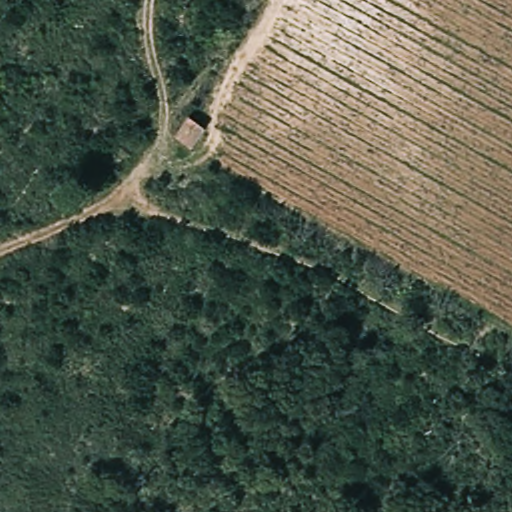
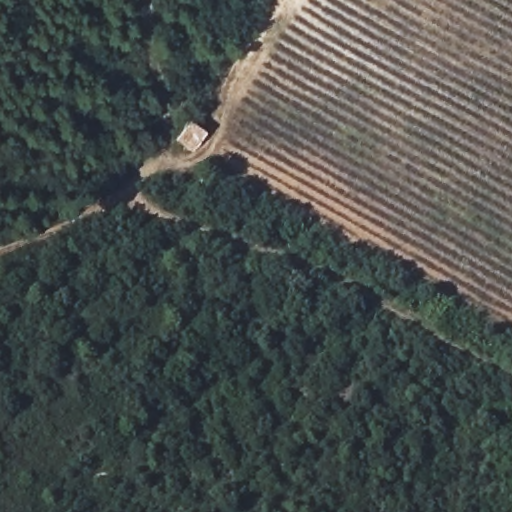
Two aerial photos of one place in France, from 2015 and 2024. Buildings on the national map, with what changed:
unchanged [(202,128),(190,148),(171,139),(183,116),(202,128)]

